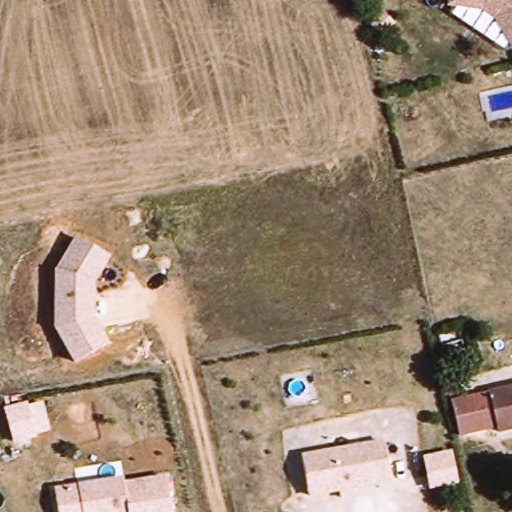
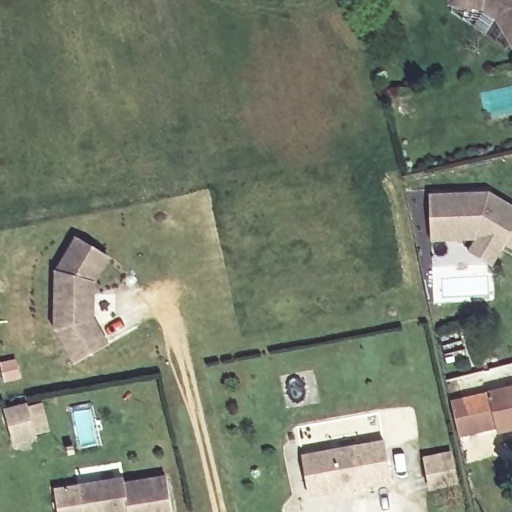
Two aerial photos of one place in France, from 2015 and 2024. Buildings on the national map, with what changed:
unchanged [(512,46),(497,20),(485,11),(452,6),(453,0),(512,0),(512,46)]
new [(492,268),(467,253),(473,240),(430,241),(429,195),(490,193),(512,207),(512,251),(507,247),(492,268)]
unchanged [(58,326),(58,275),(76,239),(110,258),(95,284),(95,317),(110,348),(78,366),(58,326)]
unchanged [(497,431),(483,434),(458,440),(450,405),(475,400),(512,392),(512,433),(498,436),(497,431)]
new [(28,410),(42,406),(48,433),(35,436),(35,438),(12,444),(5,412),(27,407),(28,410)]
unchanged [(342,497),(340,490),(310,495),(302,456),(385,441),(392,480),(353,487),(354,495),(342,497)]
unchanged [(422,458),(451,452),(458,488),(428,492),(422,458)]
unchanged [(125,479),(125,484),(167,477),(173,512),(59,512),(55,490),(125,479)]

